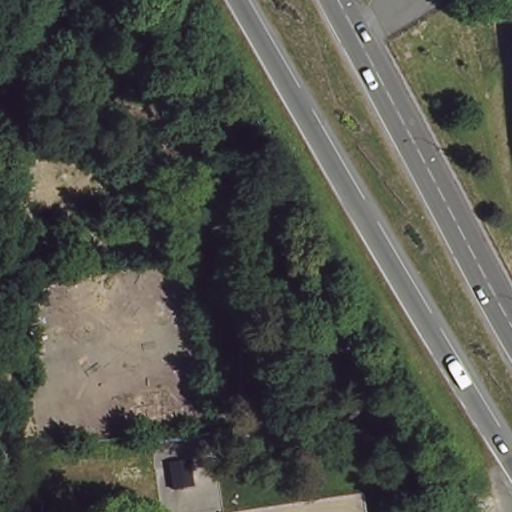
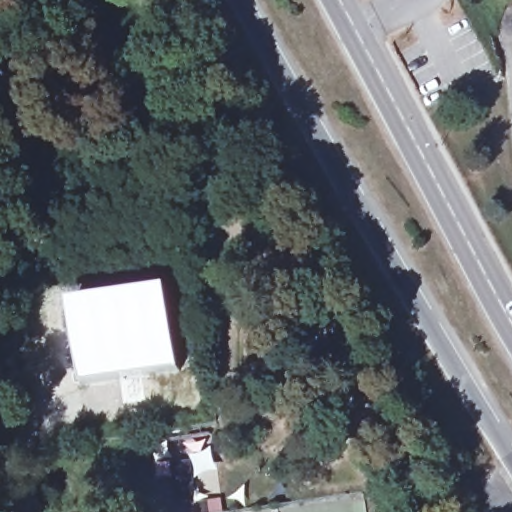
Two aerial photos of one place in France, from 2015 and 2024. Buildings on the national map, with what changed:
new [(168,290),(180,371),(82,384),(70,305),(168,290)]

